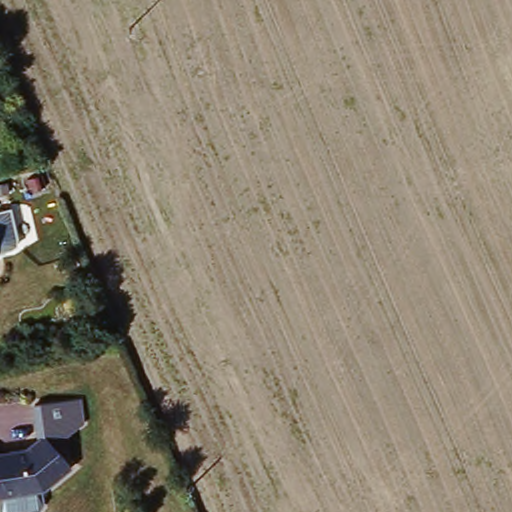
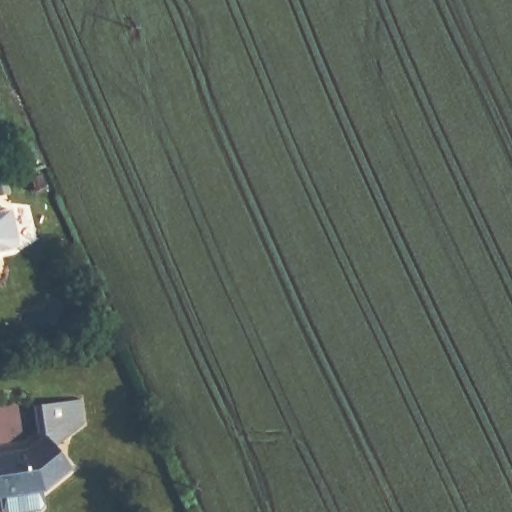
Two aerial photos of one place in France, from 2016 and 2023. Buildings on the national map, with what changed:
unchanged [(33,405),(81,398),(85,423),(52,446),(45,438),(38,443),(33,405)]
unchanged [(27,451),(45,438),(73,471),(43,493),(1,500),(0,500),(0,456),(27,451)]

